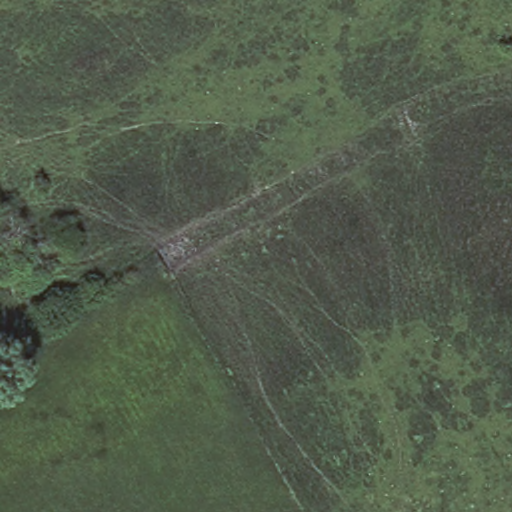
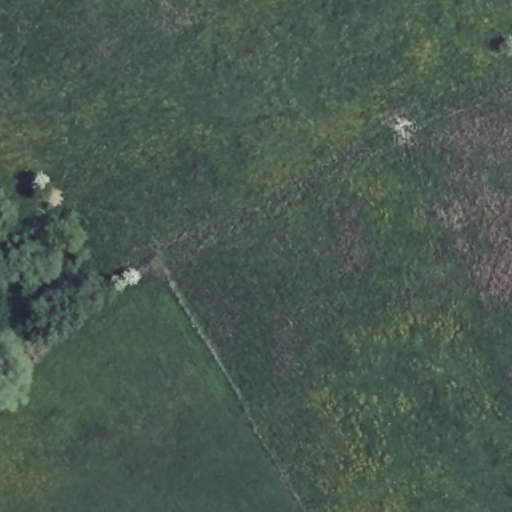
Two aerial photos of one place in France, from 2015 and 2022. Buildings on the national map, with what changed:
[]

